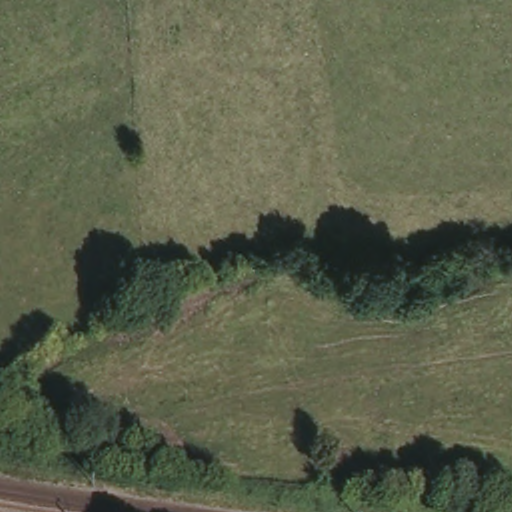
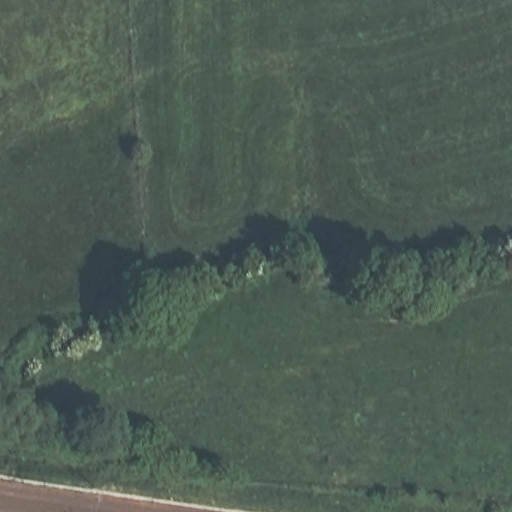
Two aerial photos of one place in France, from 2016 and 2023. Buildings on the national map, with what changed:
unchanged [(335,446),(356,442),(358,464),(336,467),(335,446)]

